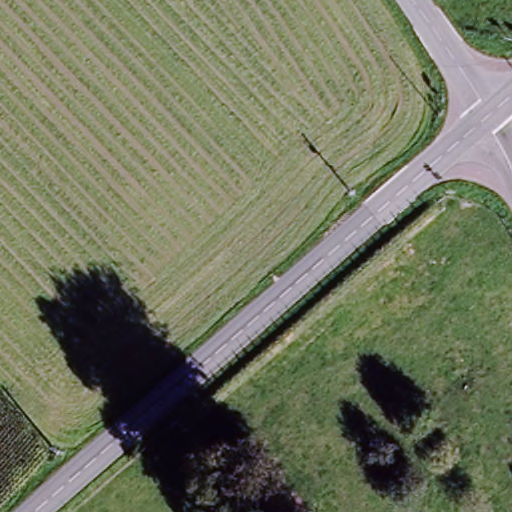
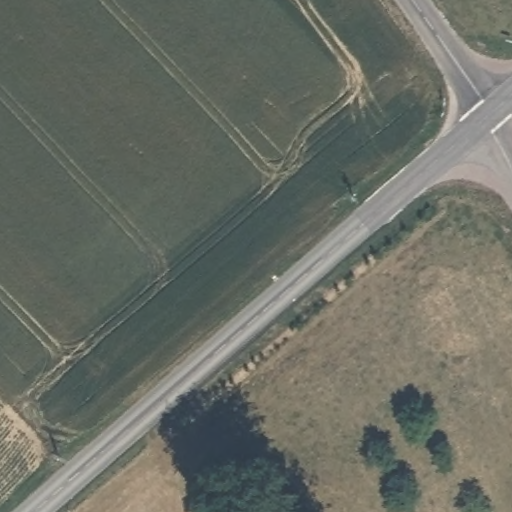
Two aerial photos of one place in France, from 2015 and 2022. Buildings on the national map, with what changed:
[]

